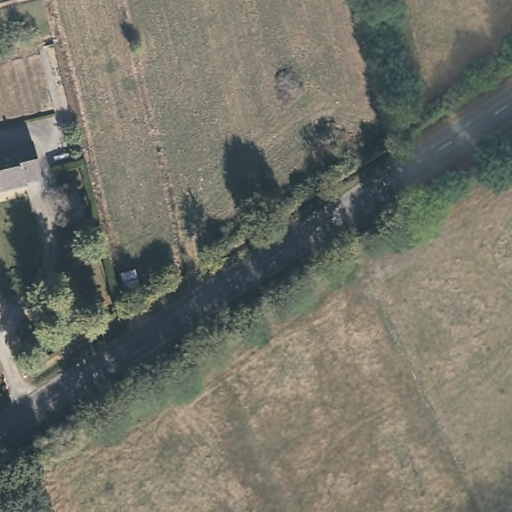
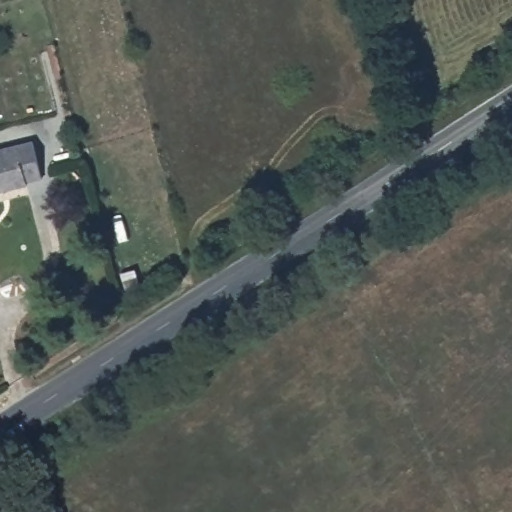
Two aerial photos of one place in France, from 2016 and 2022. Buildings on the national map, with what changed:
unchanged [(43,175),(0,186),(0,146),(35,137),(43,175)]

